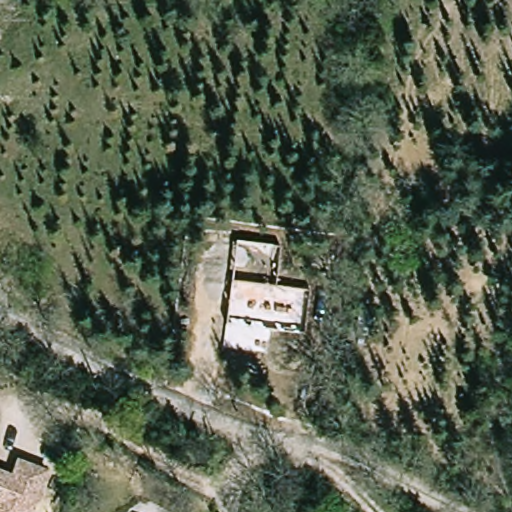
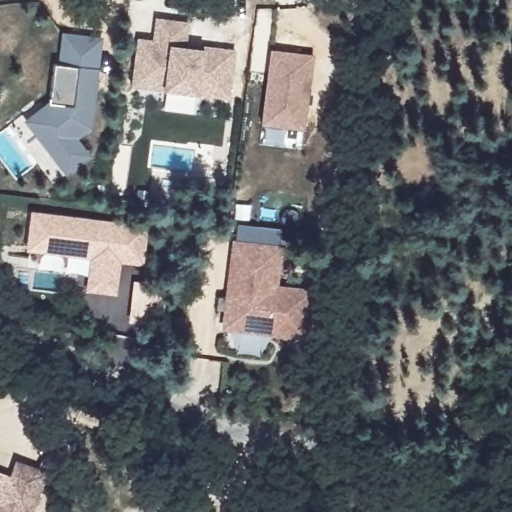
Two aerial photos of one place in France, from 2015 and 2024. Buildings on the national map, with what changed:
new [(153,43),(156,21),(188,25),(186,47),(212,50),(235,52),(229,100),(132,89),(138,41),(153,43)]
new [(50,106),(54,69),(60,69),(64,40),(100,44),(94,93),(93,102),(90,131),(75,141),(88,159),(65,176),(38,140),(26,124),(44,110),(50,106)]
new [(270,54),(312,59),(303,132),(261,127),(270,54)]
new [(149,226),(144,266),(121,263),(117,296),(84,292),(90,260),(25,252),(30,211),(149,226)]
new [(283,245),(279,285),(314,290),(308,340),(221,330),(233,239),(283,245)]
new [(166,286),(161,326),(128,322),(133,281),(166,286)]
unchanged [(18,463),(48,477),(32,512),(0,512),(0,474),(11,480),(18,463)]

